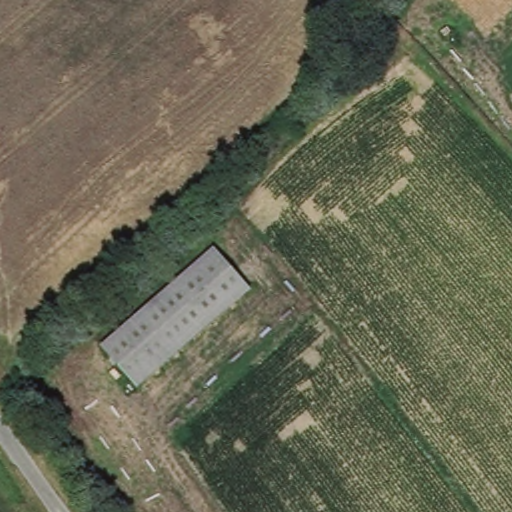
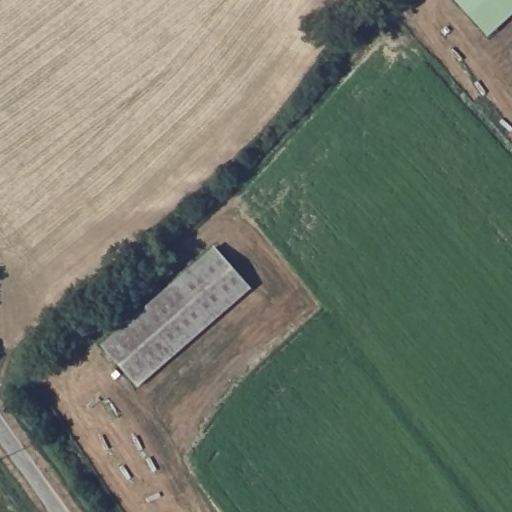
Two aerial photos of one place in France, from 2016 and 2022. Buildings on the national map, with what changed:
new [(455,0),(512,0),(512,15),(489,36),(455,0)]
unchanged [(106,347),(221,251),(254,296),(142,393),(106,347)]

